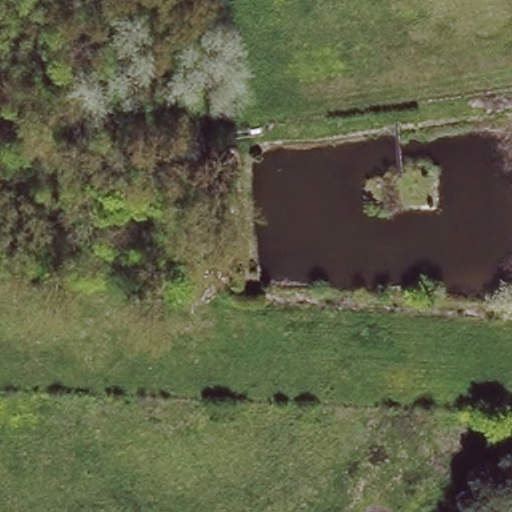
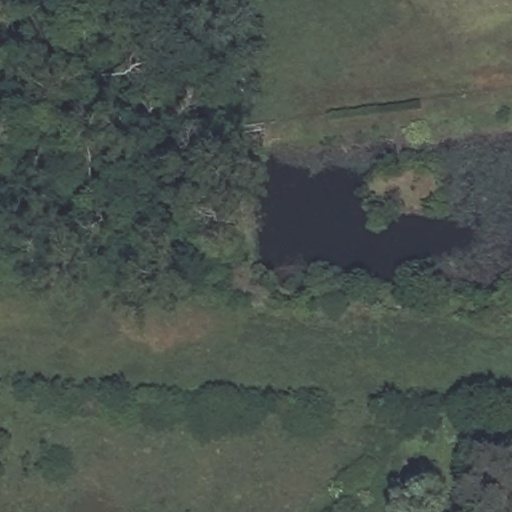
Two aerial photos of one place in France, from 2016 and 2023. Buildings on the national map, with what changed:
[]

